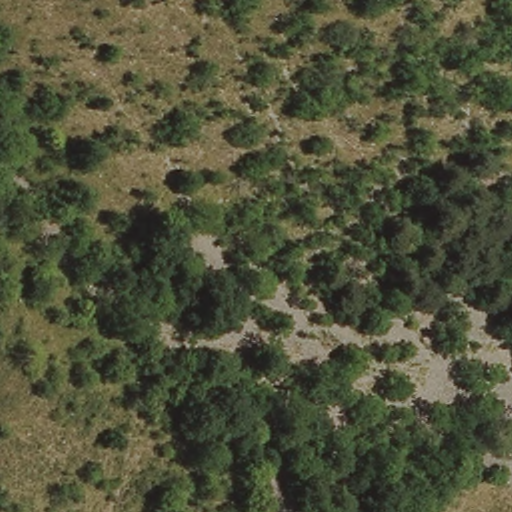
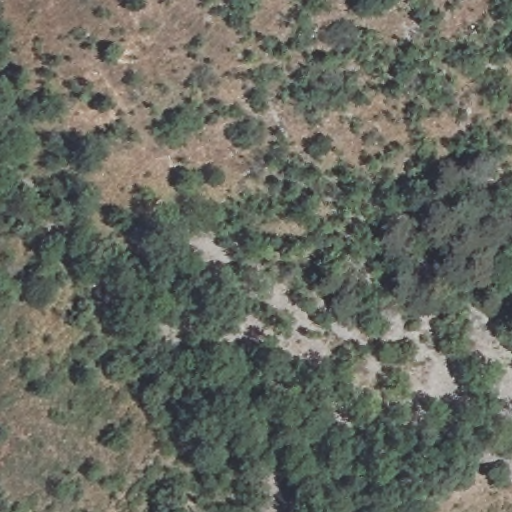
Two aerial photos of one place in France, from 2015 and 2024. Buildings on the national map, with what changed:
[]

